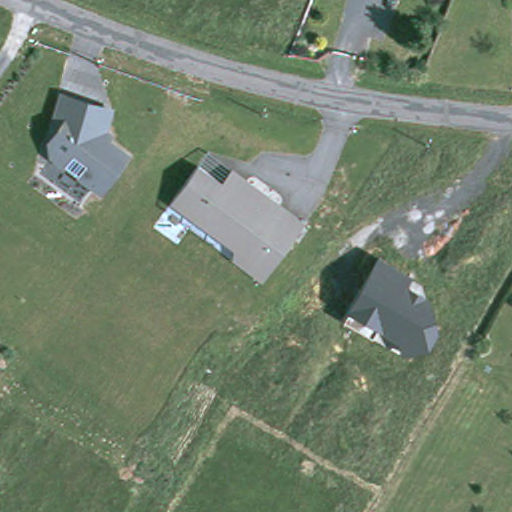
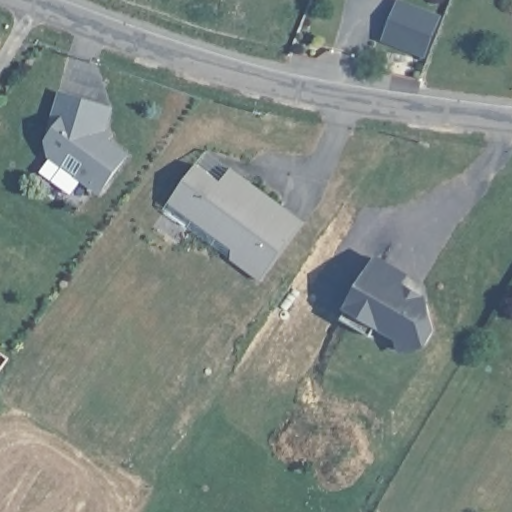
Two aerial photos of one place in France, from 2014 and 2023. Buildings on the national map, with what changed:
new [(402,0),(443,16),(426,60),(381,42),(398,0),(402,0)]
unchanged [(113,106),(108,129),(114,133),(112,139),(129,151),(99,194),(46,155),(48,123),(58,90),(113,106)]
unchanged [(303,220),(261,280),(229,258),(233,251),(169,204),(206,150),(303,220)]
unchanged [(412,275),(406,285),(427,295),(428,303),(433,302),(439,330),(429,350),(407,356),(343,318),(377,256),(412,275)]

